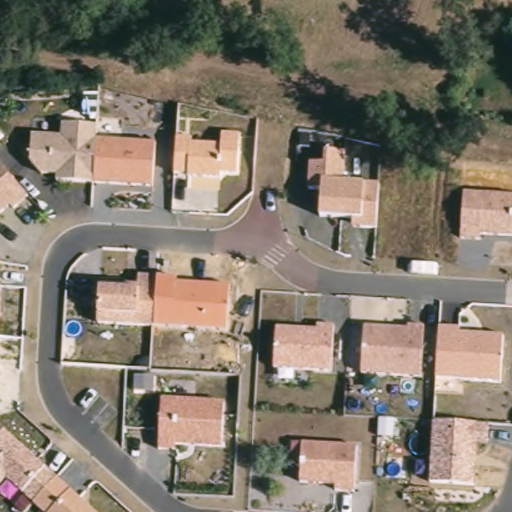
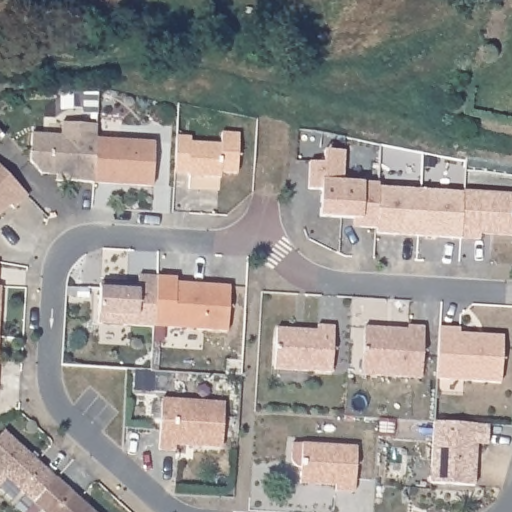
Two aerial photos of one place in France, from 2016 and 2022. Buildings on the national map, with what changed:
unchanged [(63,122),(99,123),(97,184),(57,183),(57,171),(31,171),(32,135),(62,135),(63,122)]
unchanged [(222,142),(222,131),(241,131),(241,173),(223,173),(223,177),(190,177),(190,172),(176,172),(176,134),(192,134),(192,142),(222,142)]
new [(4,136),(0,139),(0,132),(4,136)]
unchanged [(153,187),(97,184),(98,139),(154,141),(153,187)]
unchanged [(325,161),(326,147),(346,147),(345,180),(380,181),(379,229),(354,227),(354,216),(322,215),(322,186),(310,186),(311,161),(325,161)]
unchanged [(14,212),(8,207),(0,214),(0,167),(29,197),(14,212)]
new [(376,234),(376,229),(379,229),(380,187),(464,190),(462,238),(376,234)]
unchanged [(481,239),(462,238),(464,190),(512,192),(512,234),(481,233),(481,239)]
unchanged [(139,275),(177,277),(177,282),(229,286),(227,332),(97,324),(101,281),(139,283),(139,275)]
unchanged [(1,287),(0,298),(0,287),(1,287)]
unchanged [(335,322),(332,376),(271,372),(273,326),(315,328),(316,321),(335,322)]
unchanged [(424,326),(422,377),(362,373),(363,326),(407,328),(407,325),(424,326)]
unchanged [(498,382),(436,378),(438,326),(462,327),(461,332),(503,333),(498,382)]
unchanged [(222,450),(157,446),(161,397),(224,401),(222,450)]
unchanged [(488,447),(477,446),(475,486),(429,483),(432,420),(490,422),(488,447)]
unchanged [(96,512),(42,512),(7,478),(0,487),(0,433),(3,430),(96,512)]
unchanged [(354,491),(334,490),(334,483),(298,481),(298,468),(292,460),(293,441),(356,445),(354,491)]

